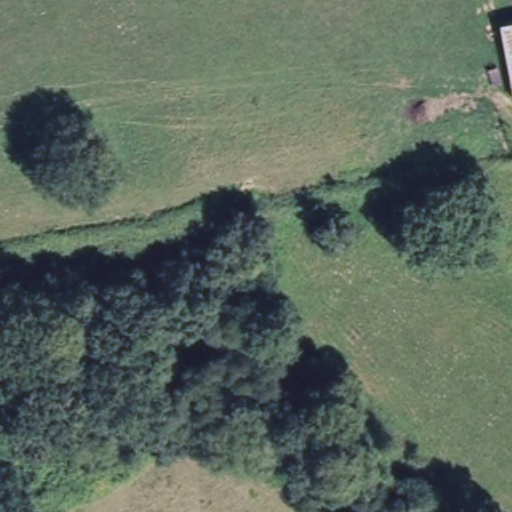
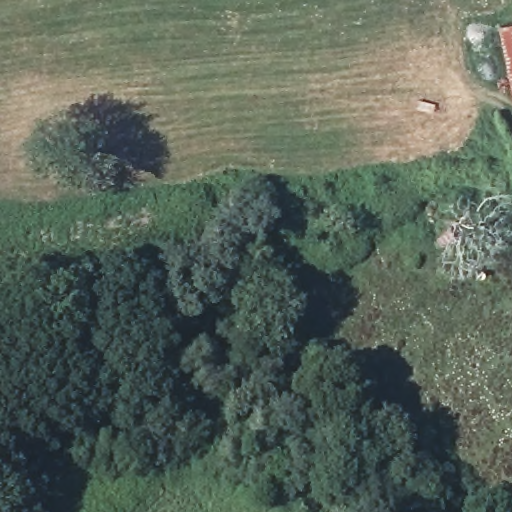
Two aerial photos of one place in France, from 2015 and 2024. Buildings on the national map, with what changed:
unchanged [(512,18),(512,101),(495,22),(512,18)]

